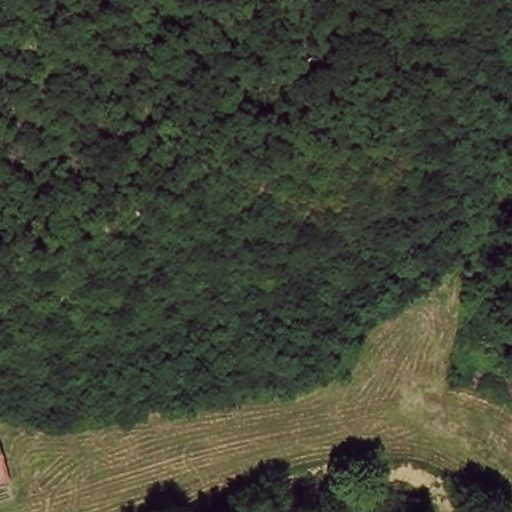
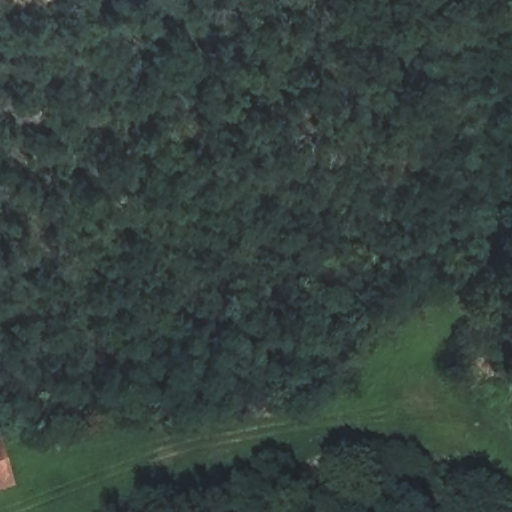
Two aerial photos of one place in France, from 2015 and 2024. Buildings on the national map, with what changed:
unchanged [(0,481),(0,451),(10,478),(0,481)]

